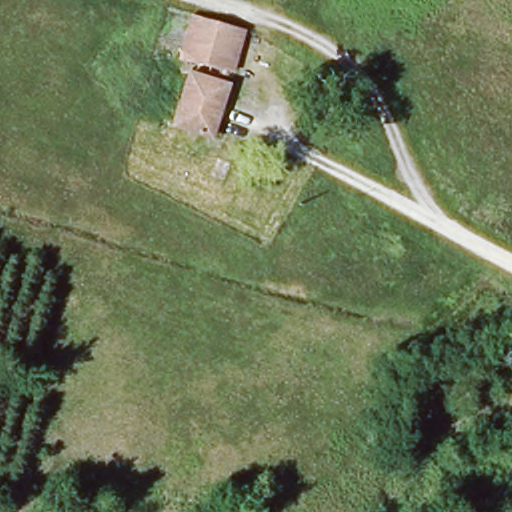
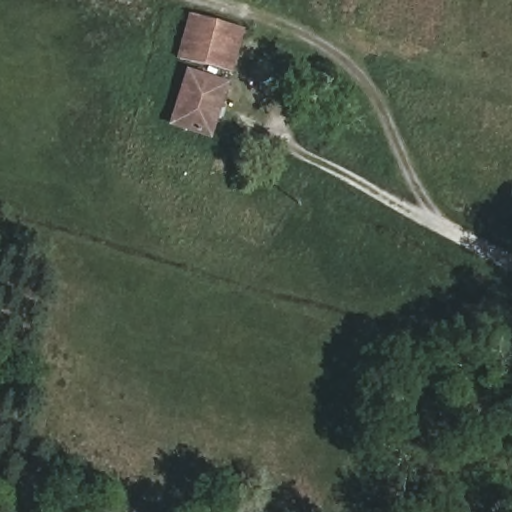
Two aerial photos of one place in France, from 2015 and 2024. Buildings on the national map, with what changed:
unchanged [(199,14),(248,29),(236,76),(186,62),(199,14)]
unchanged [(174,126),(187,70),(231,85),(218,138),(174,126)]

